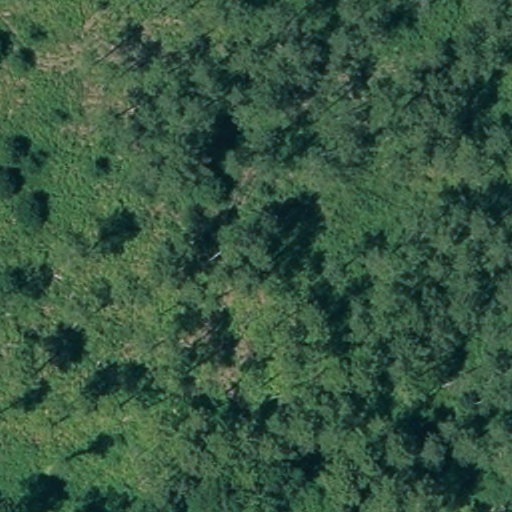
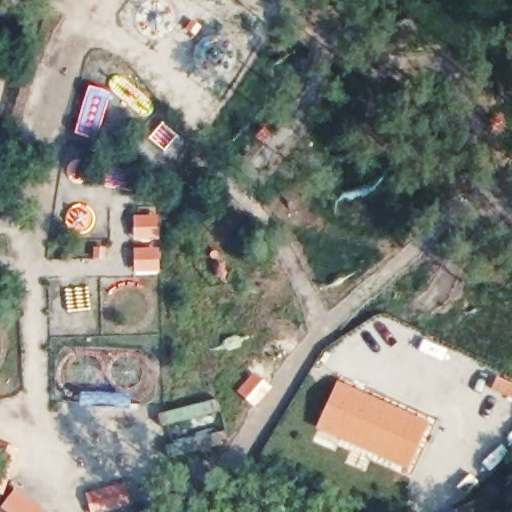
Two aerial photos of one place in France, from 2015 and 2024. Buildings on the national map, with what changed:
new [(254,371),(272,387),(253,407),(235,391),(254,371)]
new [(337,379),(426,415),(425,416),(432,420),(409,473),(388,465),(314,429),(337,379)]
new [(47,512),(5,512),(0,508),(15,488),(47,512)]

